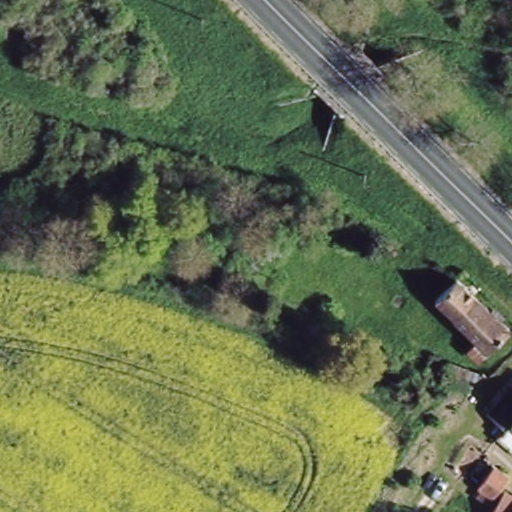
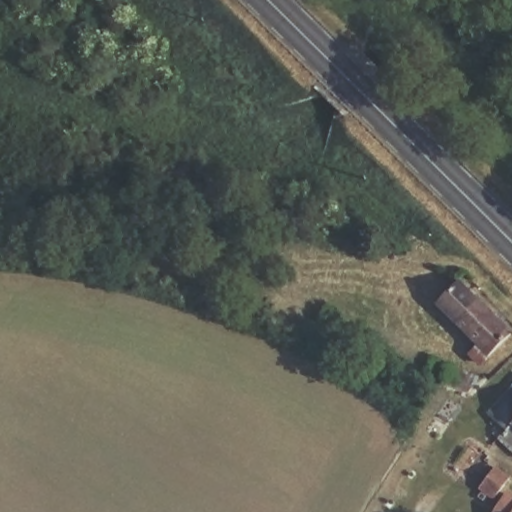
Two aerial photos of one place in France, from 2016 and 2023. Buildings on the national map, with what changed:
unchanged [(487,354),(480,362),(468,351),(478,341),(453,318),(436,300),(456,283),(457,282),(472,297),(507,332),(487,354)]
unchanged [(492,432),(488,429),(498,414),(497,413),(487,405),(480,401),(482,399),(478,396),(507,361),(512,366),(512,448),(492,432)]
unchanged [(437,382),(450,364),(482,378),(467,393),(437,382)]
unchanged [(483,491),(480,496),(475,492),(480,486),(477,484),(490,464),(504,474),(490,495),(483,491)]
unchanged [(505,489),(512,494),(512,512),(492,512),(505,489)]

